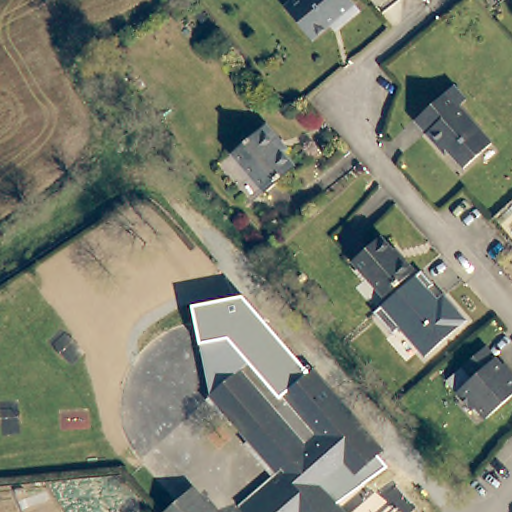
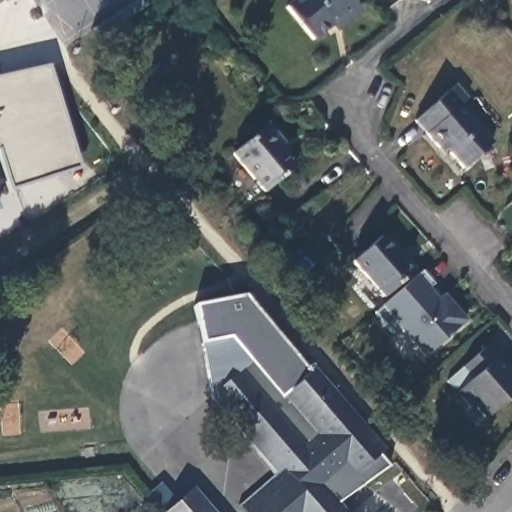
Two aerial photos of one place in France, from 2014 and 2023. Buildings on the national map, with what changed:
unchanged [(337,28),(332,21),(309,40),(283,6),(291,0),(348,0),(358,12),(337,28)]
new [(0,157),(0,74),(49,65),(80,168),(11,186),(0,157)]
unchanged [(459,109),(490,147),(462,171),(441,148),(439,150),(415,123),(454,88),(466,102),(459,109)]
unchanged [(261,192),(230,154),(267,124),(279,140),(274,144),(293,167),(261,192)]
unchanged [(385,292),(355,255),(383,232),(402,255),(404,254),(416,267),(385,292)]
unchanged [(382,305),(415,276),(421,270),(434,285),(428,290),(437,300),(443,293),(467,322),(425,356),(398,326),(392,333),(375,312),(382,305)]
unchanged [(282,397),(249,361),(209,397),(199,345),(192,305),(244,295),(309,373),(282,397)]
unchanged [(512,373),(512,394),(482,423),(448,380),(485,345),(512,373)]
unchanged [(248,512),(249,511),(242,502),(270,478),(278,486),(290,475),(282,467),(276,472),(247,440),(209,397),(249,361),(282,397),(314,370),(336,395),(350,410),(385,450),(354,476),(332,495),(347,512),(248,512)]
unchanged [(207,512),(167,512),(190,492),(207,512)]

